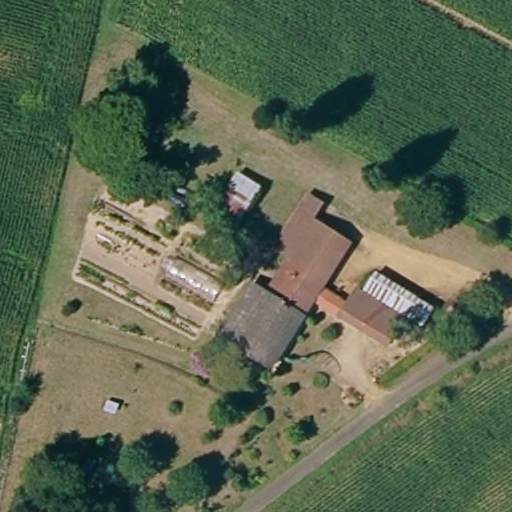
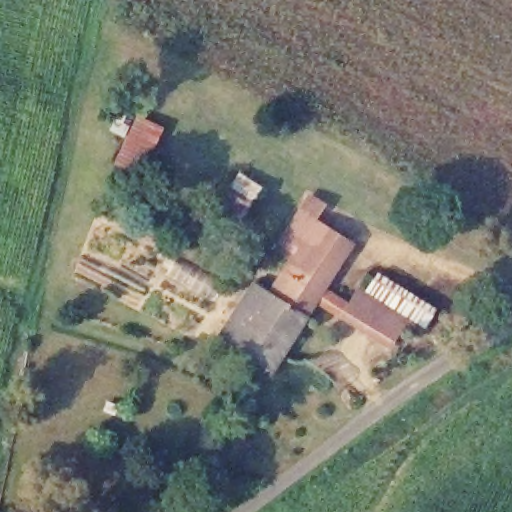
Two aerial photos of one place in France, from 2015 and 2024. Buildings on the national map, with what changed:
new [(137,115),(163,127),(145,164),(139,161),(132,173),(113,164),(137,115)]
unchanged [(245,230),(223,216),(242,187),(265,202),(245,230)]
unchanged [(271,370),(219,338),(251,284),(272,295),(291,263),(272,252),(295,213),(303,200),(322,212),(312,225),(347,249),(271,370)]
unchanged [(377,299),(381,290),(369,282),(375,273),(432,309),(420,328),(377,299)]
unchanged [(405,352),(342,314),(357,286),(364,290),(369,282),(381,290),(377,299),(420,328),(405,352)]
unchanged [(242,396),(251,379),(267,388),(257,406),(242,396)]

